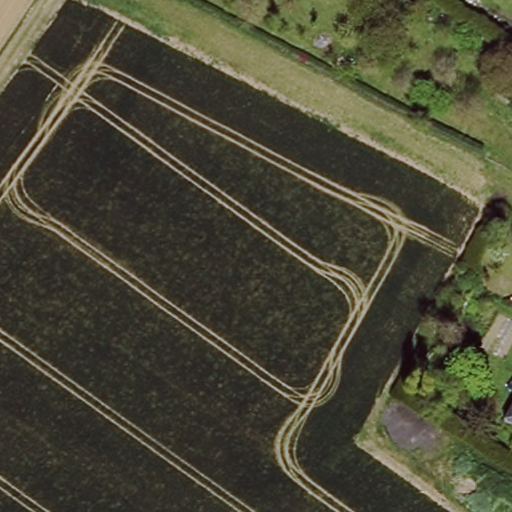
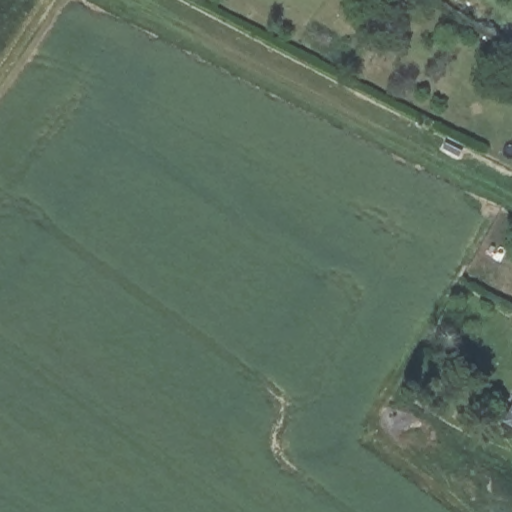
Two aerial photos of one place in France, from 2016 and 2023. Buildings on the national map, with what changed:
unchanged [(500,421),(512,398),(512,428),(500,421)]

